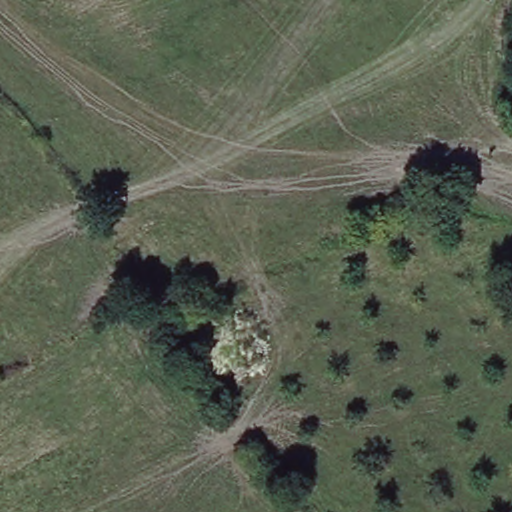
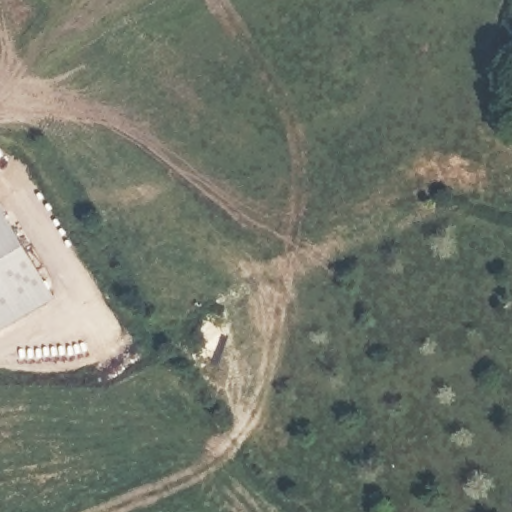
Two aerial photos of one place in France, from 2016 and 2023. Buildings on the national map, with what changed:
new [(0,343),(0,204),(60,310),(0,343)]

